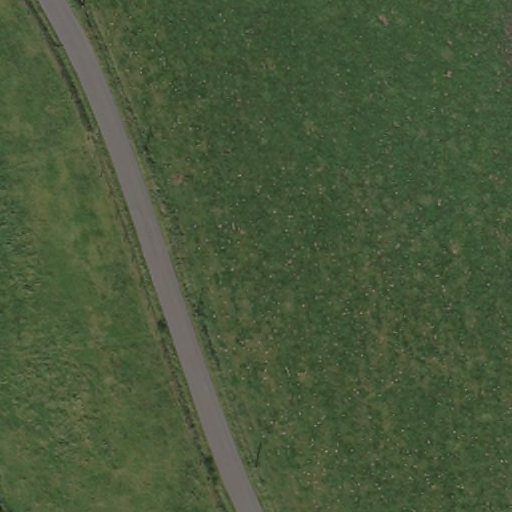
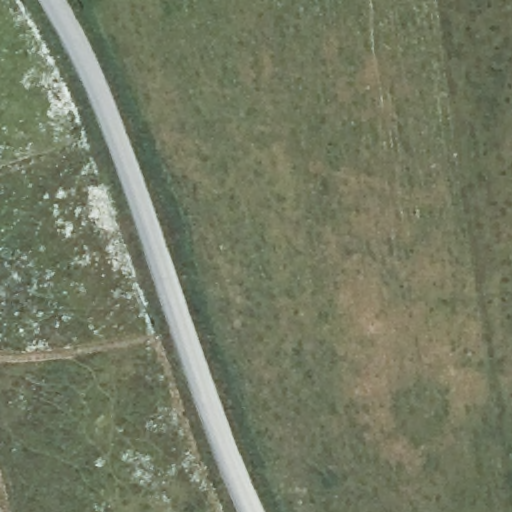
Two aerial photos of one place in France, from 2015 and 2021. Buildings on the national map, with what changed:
[]

